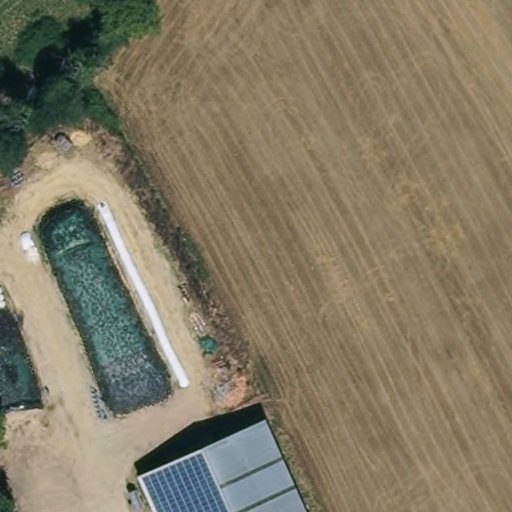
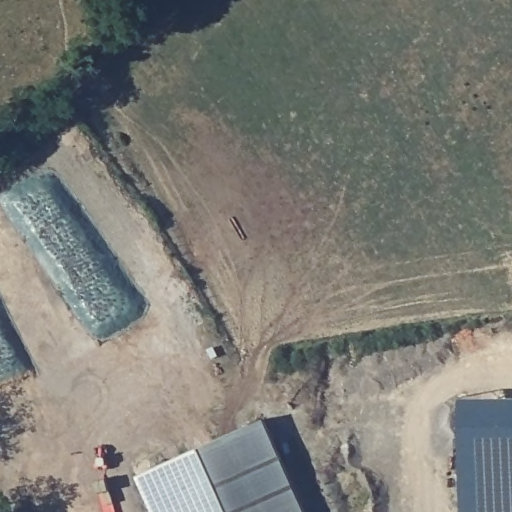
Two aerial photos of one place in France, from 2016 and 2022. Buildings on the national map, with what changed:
new [(464,396),(512,396),(512,512),(464,512),(464,396)]
unchanged [(146,476),(270,417),(314,512),(162,512),(146,476)]

